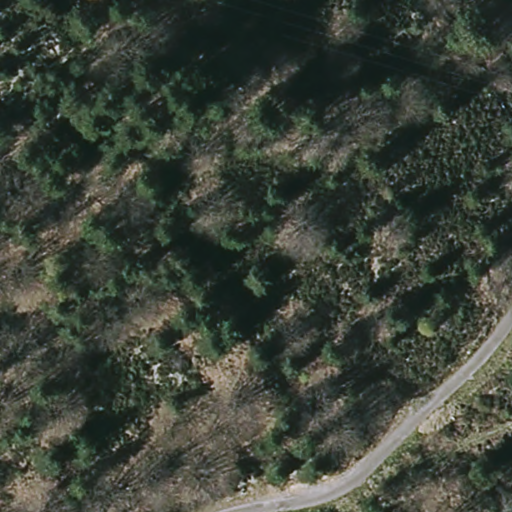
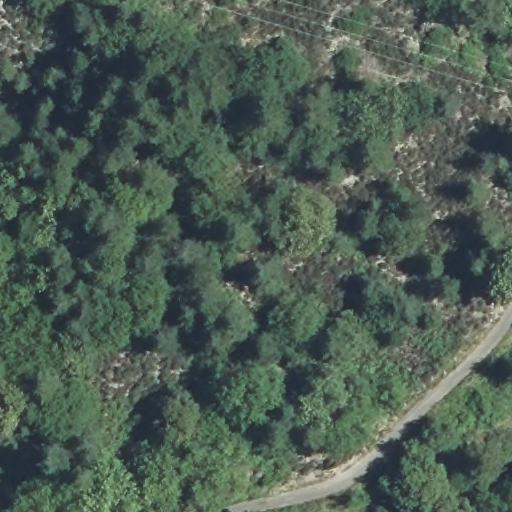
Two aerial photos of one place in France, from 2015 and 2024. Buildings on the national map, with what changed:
[]

